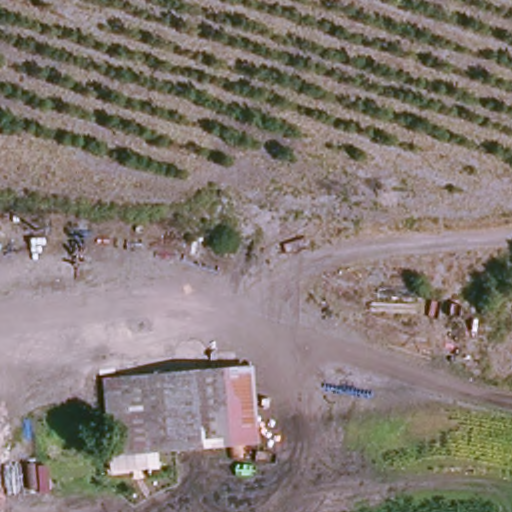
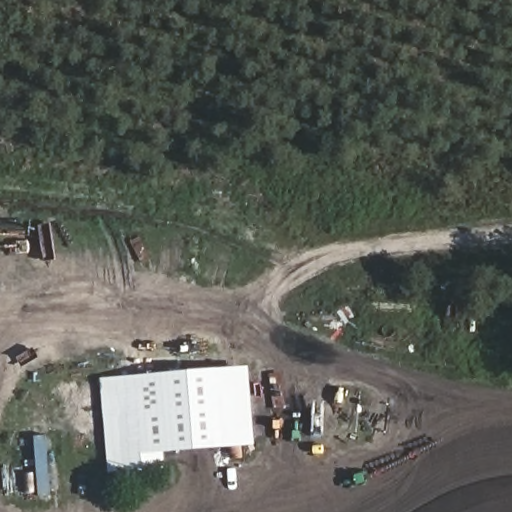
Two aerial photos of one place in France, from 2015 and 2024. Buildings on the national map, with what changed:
unchanged [(218,369),(249,367),(256,445),(225,447),(218,369)]
unchanged [(102,377),(218,369),(225,447),(107,456),(102,377)]

